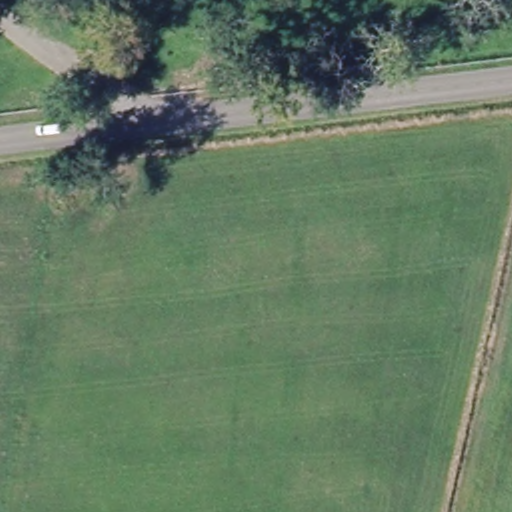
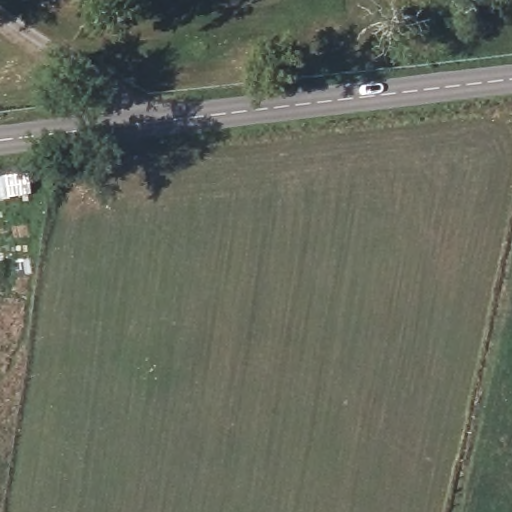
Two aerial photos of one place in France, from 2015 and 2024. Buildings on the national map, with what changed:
unchanged [(104,160),(105,177),(65,177),(64,161),(104,160)]

